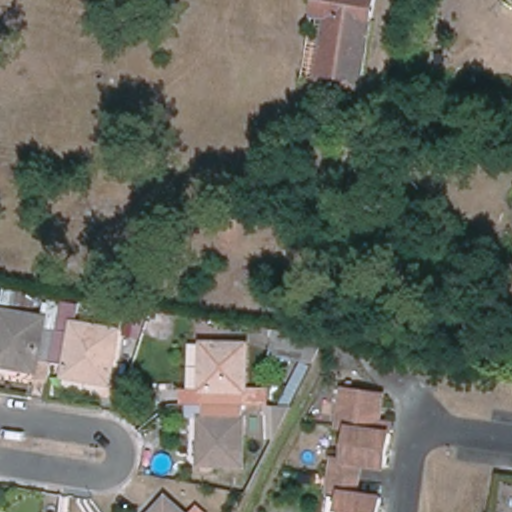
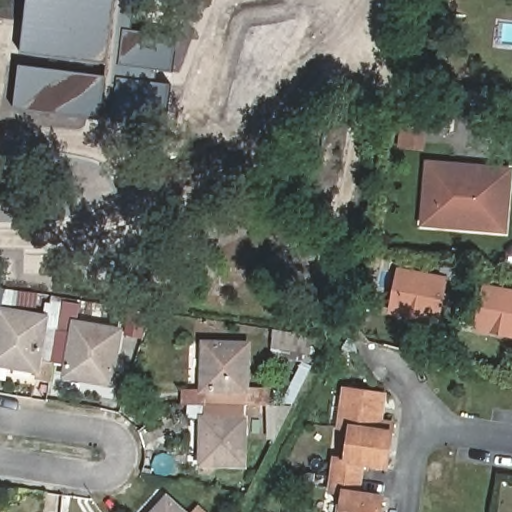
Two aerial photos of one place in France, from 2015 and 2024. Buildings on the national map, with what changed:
new [(103,119),(14,109),(19,65),(105,76),(108,63),(22,53),(28,0),(136,0),(133,31),(126,30),(121,65),(160,69),(158,84),(121,80),(118,116),(103,115),(103,119)]
demolished [(374,0),(363,66),(358,65),(355,79),(317,72),(329,0),(374,0)]
new [(121,65),(126,30),(175,36),(171,70),(121,65)]
new [(121,80),(169,85),(165,126),(118,119),(121,80)]
new [(509,234),(421,227),(426,159),(512,166),(512,197),(509,234)]
unchanged [(509,274),(512,260),(512,275),(509,274)]
new [(433,322),(386,312),(395,270),(442,280),(433,322)]
new [(482,332),(491,290),(512,295),(512,338),(482,332)]
unchanged [(46,329),(73,333),(74,323),(121,331),(112,386),(65,377),(66,367),(40,363),(39,373),(0,366),(0,312),(1,309),(48,318),(46,329)]
unchanged [(131,311),(146,314),(142,339),(126,335),(131,311)]
unchanged [(307,334),(306,347),(318,352),(292,409),(275,443),(267,442),(271,406),(279,406),(300,362),(271,362),(276,332),(307,334)]
unchanged [(253,390),(275,391),(274,404),(252,404),(251,419),(252,419),(251,468),(205,467),(207,418),(211,419),(212,392),(208,392),(207,392),(209,343),(255,344),(253,390)]
unchanged [(202,391),(207,392),(208,392),(207,414),(202,415),(200,463),(185,463),(186,423),(189,345),(203,345),(202,391)]
unchanged [(381,431),(393,433),(388,468),(364,464),(360,494),(384,498),(381,512),(359,512),(343,509),(345,494),(331,493),(336,459),(347,461),(352,429),(340,428),(345,389),(386,395),(381,431)]
unchanged [(189,512),(151,512),(168,493),(189,512)]

